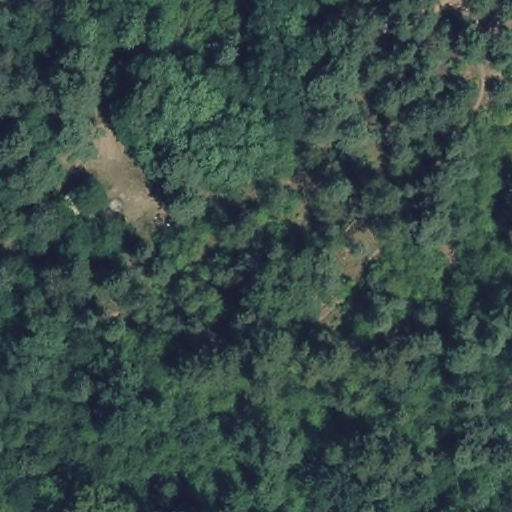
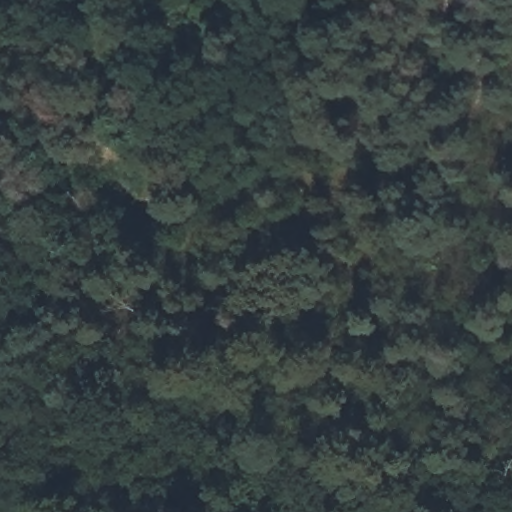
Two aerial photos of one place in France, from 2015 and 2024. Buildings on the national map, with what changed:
unchanged [(113,231),(91,250),(53,204),(69,186),(113,231)]

